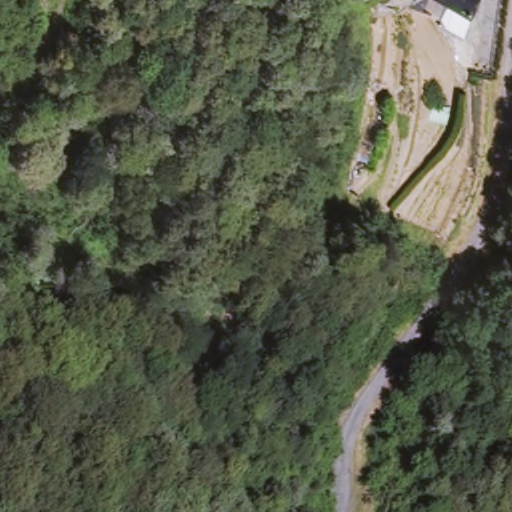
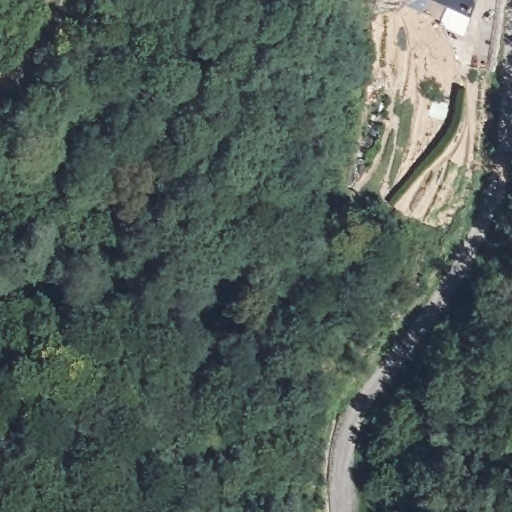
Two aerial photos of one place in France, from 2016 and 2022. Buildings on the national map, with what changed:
unchanged [(467,11),(443,0),(472,0),(467,11)]
unchanged [(367,121),(365,117),(371,95),(385,102),(371,160),(357,156),(367,121)]

